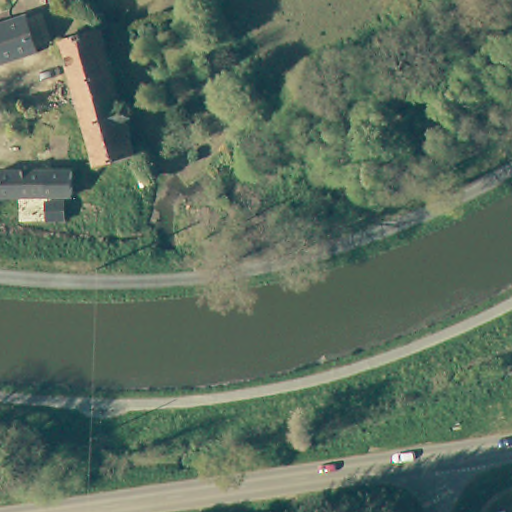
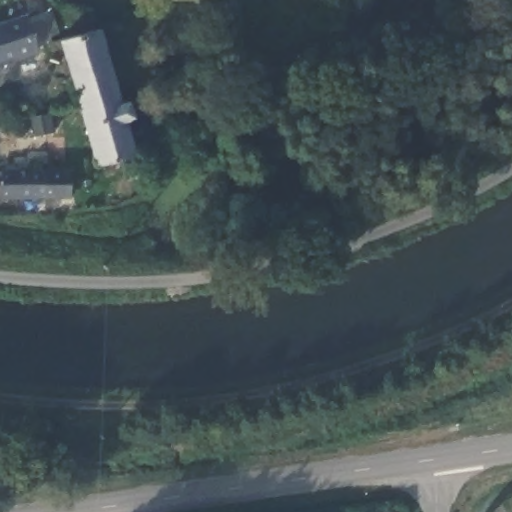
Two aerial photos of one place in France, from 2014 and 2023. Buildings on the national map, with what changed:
unchanged [(0,64),(0,27),(26,19),(36,53),(0,64)]
unchanged [(62,44),(101,31),(120,104),(131,106),(133,121),(126,126),(136,157),(97,169),(78,106),(62,44)]
unchanged [(58,197),(0,202),(0,173),(57,170),(58,197)]

